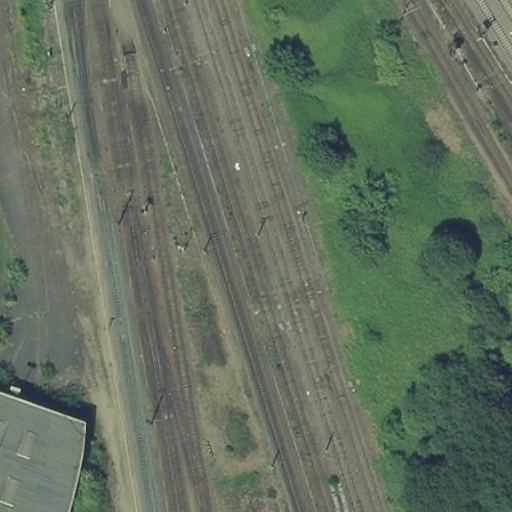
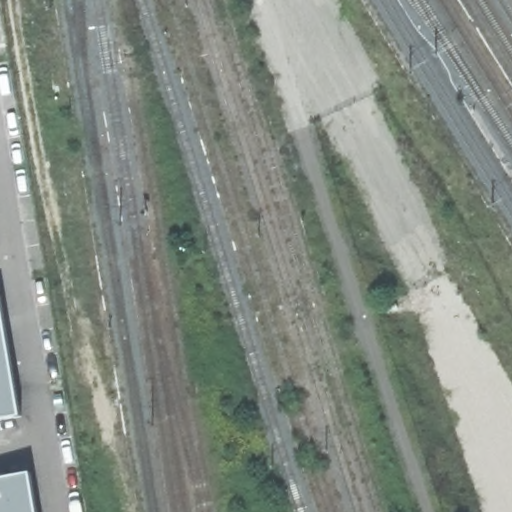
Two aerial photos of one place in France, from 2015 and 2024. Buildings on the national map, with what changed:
new [(21,417),(0,421),(0,297),(21,417)]
demolished [(83,464),(74,503),(72,512),(0,512),(0,390),(89,425),(83,464)]
new [(37,512),(0,512),(0,479),(31,474),(37,512)]

